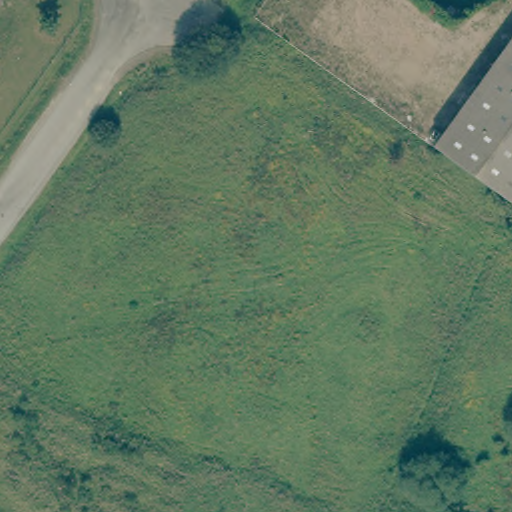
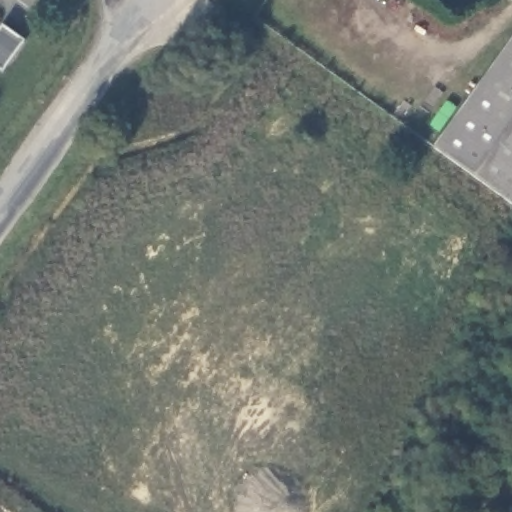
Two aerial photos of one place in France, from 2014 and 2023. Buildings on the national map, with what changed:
new [(21,43),(0,73),(0,28),(21,43)]
unchanged [(433,151),(512,41),(512,206),(509,204),(433,151)]

